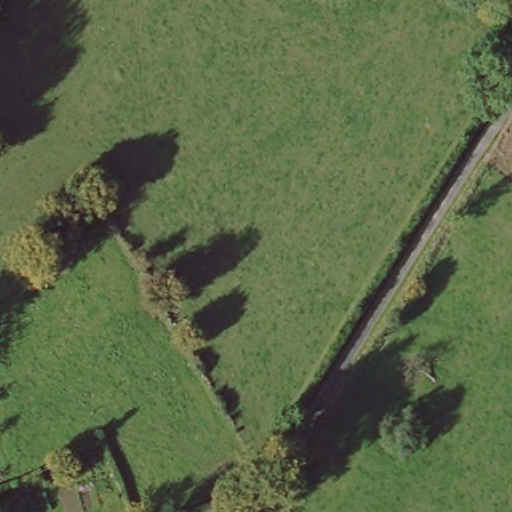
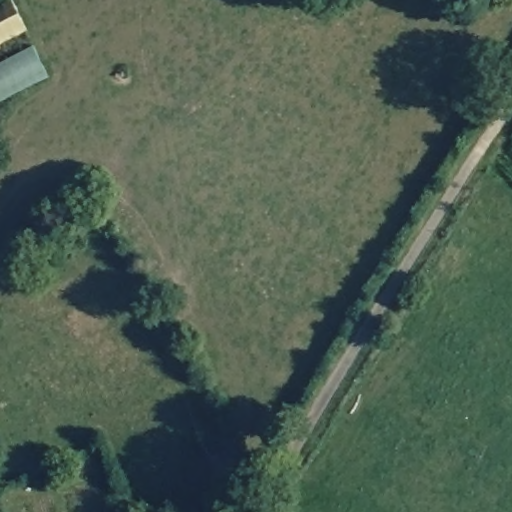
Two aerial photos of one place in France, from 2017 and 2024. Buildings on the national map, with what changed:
new [(5,0),(13,0),(28,29),(0,44),(0,3),(5,0)]
new [(0,102),(0,63),(31,46),(47,77),(0,102)]

